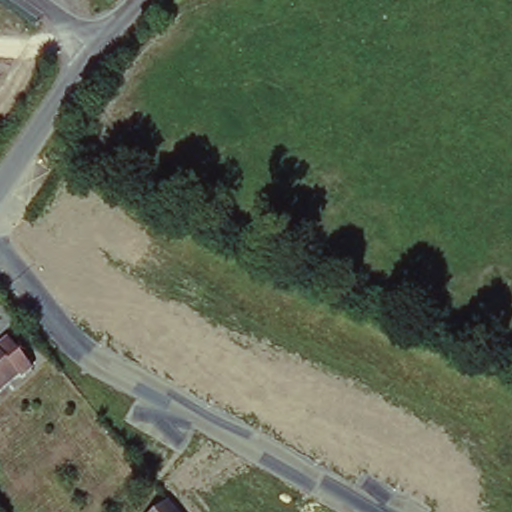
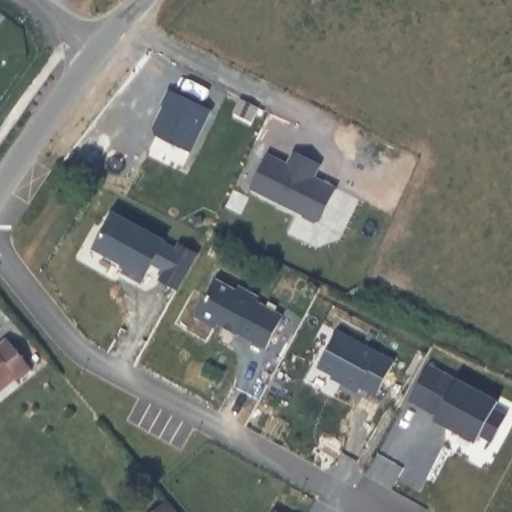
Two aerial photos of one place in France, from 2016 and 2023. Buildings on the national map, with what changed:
new [(157,136),(153,126),(165,106),(163,105),(171,90),(212,111),(191,153),(157,136)]
new [(290,166),(296,153),(321,164),(314,178),(337,189),(324,217),(308,210),(305,215),(253,188),(268,156),(290,166)]
new [(159,281),(164,272),(154,266),(146,279),(142,285),(122,274),(126,267),(94,250),(114,212),(167,241),(176,247),(178,243),(199,254),(178,291),(159,281)]
new [(237,289),(239,285),(259,297),(257,301),(284,316),(266,350),(239,335),(219,325),(216,329),(196,318),(217,279),(237,289)]
new [(377,397),(362,388),(359,393),(334,380),(336,376),(319,368),(338,331),(396,362),(377,397)]
unchanged [(0,345),(13,335),(38,364),(25,375),(23,373),(0,392),(0,344),(0,345)]
new [(458,378),(500,402),(497,408),(508,416),(492,444),(480,437),(476,444),(435,421),(438,416),(409,401),(429,364),(458,378)]
unchanged [(169,501),(178,512),(157,512),(169,501)]
new [(278,512),(274,512),(275,511),(278,512)]

